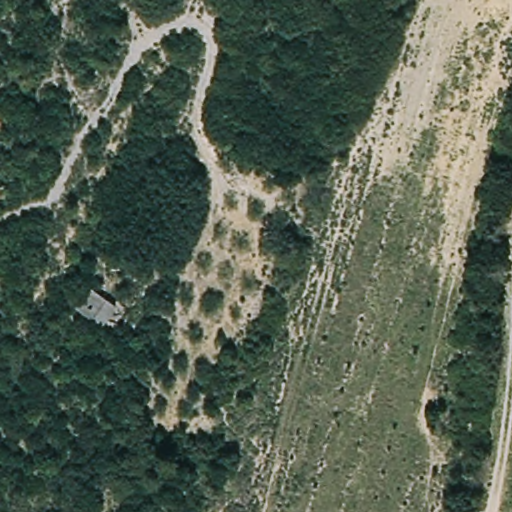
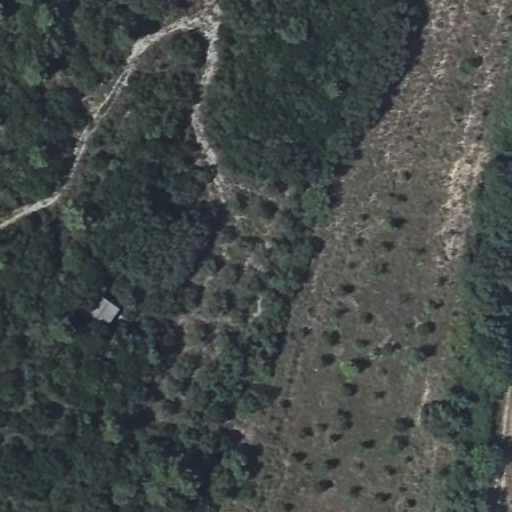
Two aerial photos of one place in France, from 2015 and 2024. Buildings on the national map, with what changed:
unchanged [(75,315),(90,291),(120,309),(103,332),(75,315)]

